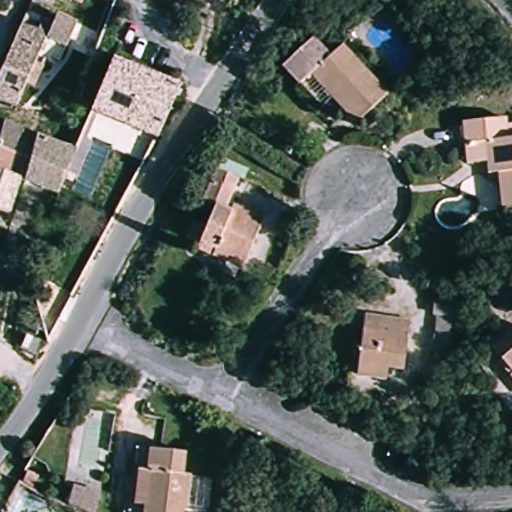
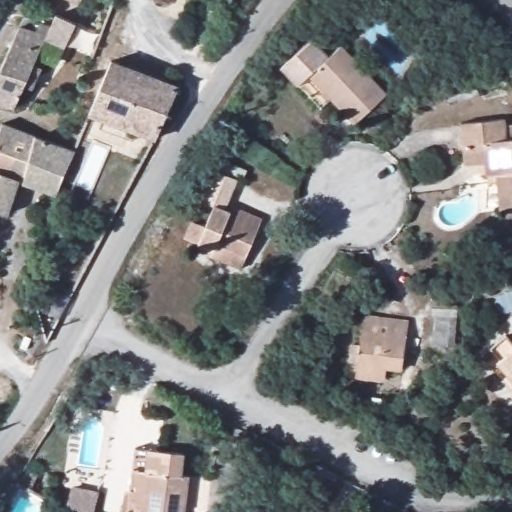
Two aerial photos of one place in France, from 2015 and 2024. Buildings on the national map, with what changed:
unchanged [(32,41),(36,32),(47,37),(53,25),(73,34),(62,57),(41,48),(35,61),(11,115),(0,111),(0,70),(16,35),(32,41)]
unchanged [(315,39),(334,61),(346,51),(392,103),(360,129),(314,78),(298,92),(279,69),(315,39)]
unchanged [(188,93),(173,117),(156,139),(86,112),(109,64),(188,93)]
unchanged [(499,211),(495,176),(485,176),(484,146),(462,147),(460,121),(506,117),(507,139),(512,139),(512,210),(499,211)]
unchanged [(0,180),(0,132),(34,140),(18,185),(9,183),(0,180)]
unchanged [(75,150),(62,196),(18,185),(34,140),(75,150)]
unchanged [(217,157),(248,170),(234,204),(229,210),(214,202),(211,206),(199,202),(217,157)]
unchanged [(0,216),(0,180),(9,183),(1,216),(0,216)]
unchanged [(210,251),(191,237),(211,206),(214,202),(229,210),(234,204),(263,223),(242,258),(232,273),(206,258),(210,251)]
unchanged [(362,311),(382,314),(409,317),(406,337),(401,371),(383,368),(381,381),(353,376),(354,364),(362,311)]
unchanged [(506,379),(483,347),(502,335),(512,348),(512,375),(506,379)]
unchanged [(149,458),(190,462),(187,504),(180,503),(180,512),(139,512),(140,498),(146,498),(149,458)]
unchanged [(87,512),(85,512),(61,500),(72,479),(97,492),(87,512)]

